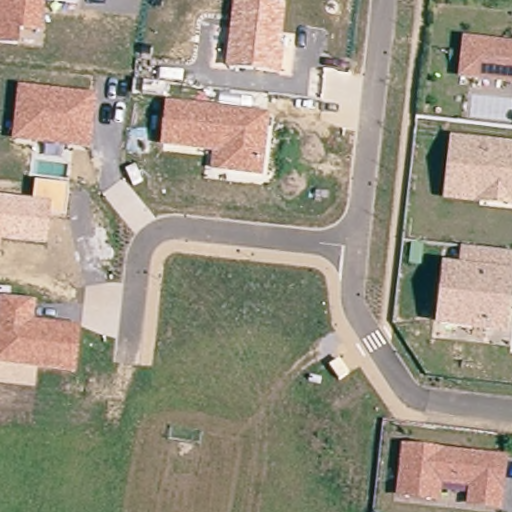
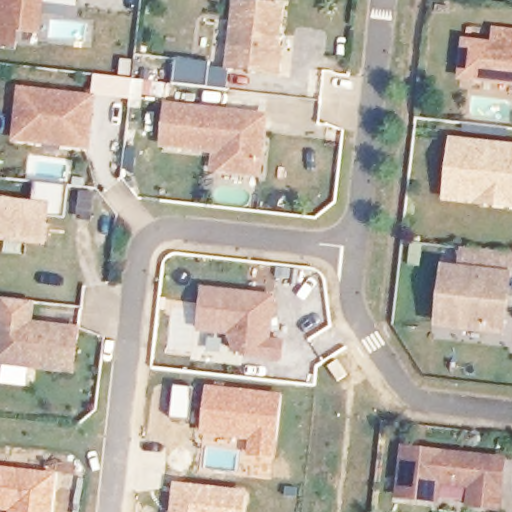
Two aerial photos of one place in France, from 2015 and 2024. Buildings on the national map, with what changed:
unchanged [(46,4),(43,34),(20,32),(18,47),(0,45),(0,0),(78,0),(77,6),(46,4)]
unchanged [(280,46),(284,47),(282,75),(225,68),(233,0),(250,0),(284,4),(280,46)]
unchanged [(467,44),(512,48),(512,85),(463,81),(467,44)]
unchanged [(98,95),(92,150),(12,141),(18,86),(98,95)]
unchanged [(269,114),(262,177),(211,171),(212,154),(161,148),(165,103),(269,114)]
unchanged [(452,145),(512,149),(512,205),(447,199),(448,185),(452,145)]
unchanged [(68,186),(66,218),(50,217),(47,246),(2,242),(0,253),(0,197),(33,201),(35,182),(68,186)]
unchanged [(512,259),(506,317),(490,331),(441,327),(446,272),(462,273),(464,250),(512,254),(512,259)]
new [(277,296),(273,339),(286,341),(283,362),(242,359),(242,352),(231,351),(231,343),(227,335),(198,332),(202,287),(277,296)]
unchanged [(75,373),(0,364),(0,298),(36,301),(34,321),(81,326),(75,373)]
new [(204,384),(282,393),(274,461),(245,458),(247,441),(198,437),(204,384)]
new [(172,386),(191,388),(188,419),(170,417),(172,386)]
unchanged [(502,471),(500,487),(498,509),(469,507),(471,485),(437,482),(435,502),(398,499),(402,452),(503,461),(502,471)]
new [(56,473),(52,512),(4,512),(0,511),(0,466),(56,473)]
new [(170,481),(246,490),(244,512),(168,512),(170,481)]

